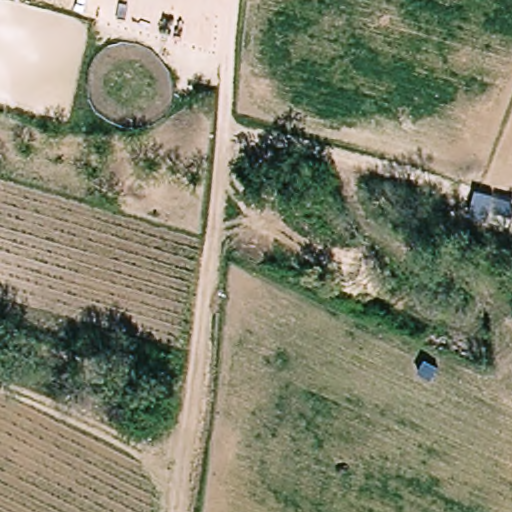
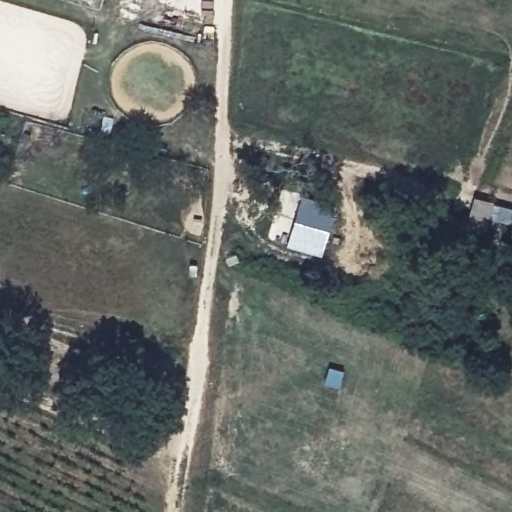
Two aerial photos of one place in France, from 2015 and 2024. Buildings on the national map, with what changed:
new [(287,245),(303,194),(336,204),(321,255),(287,245)]

